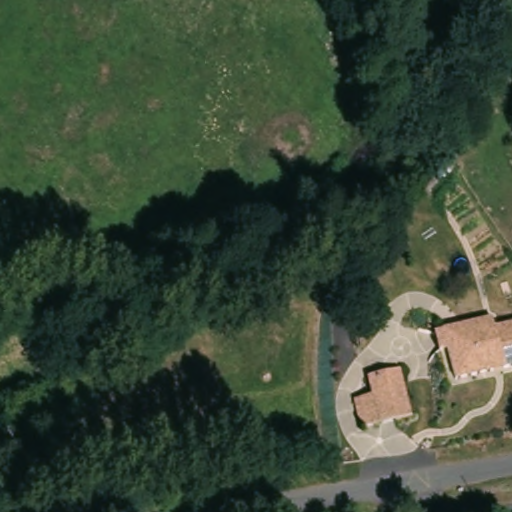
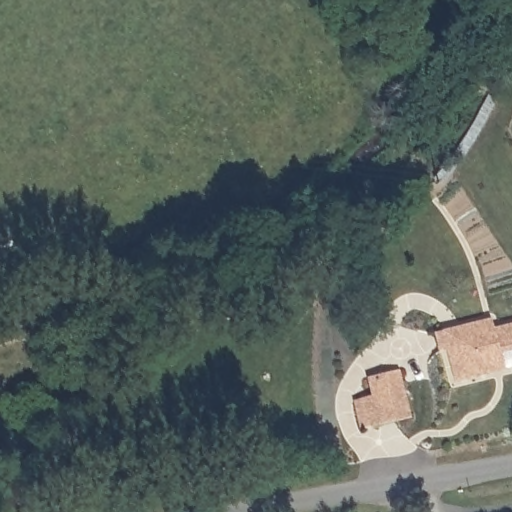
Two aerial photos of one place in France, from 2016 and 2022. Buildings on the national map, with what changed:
unchanged [(495,332),(512,328),(512,370),(460,385),(451,353),(445,355),(440,335),(465,328),(491,320),(495,332)]
unchanged [(364,425),(359,401),(372,398),(369,381),(383,378),(401,375),(408,418),(391,421),(364,425)]

